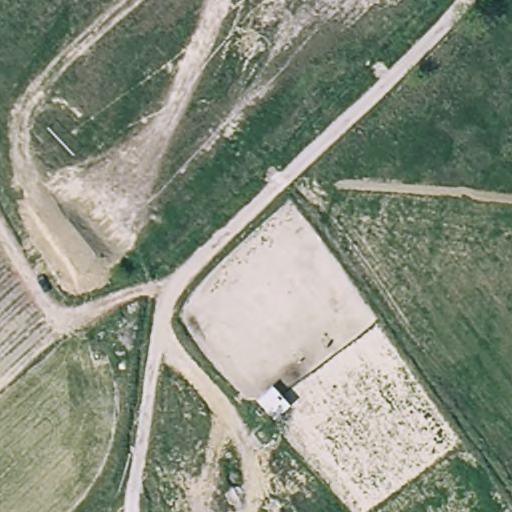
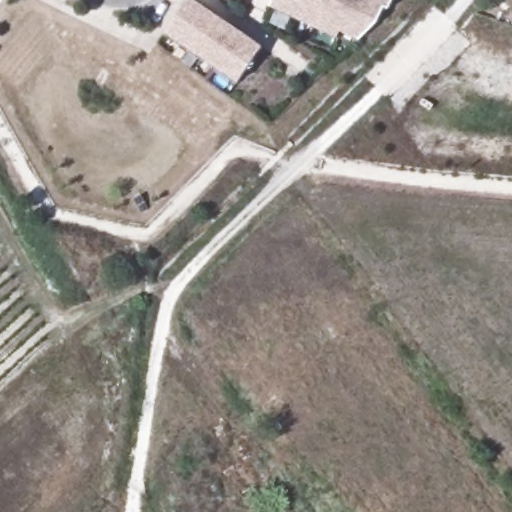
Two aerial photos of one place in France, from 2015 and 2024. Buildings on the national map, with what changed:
new [(194,0),(255,42),(233,76),(160,25),(177,0),(194,0)]
new [(329,32),(327,37),(260,5),(263,0),(383,0),(379,8),(375,7),(367,22),(357,32),(353,35),(333,26),(329,32)]

